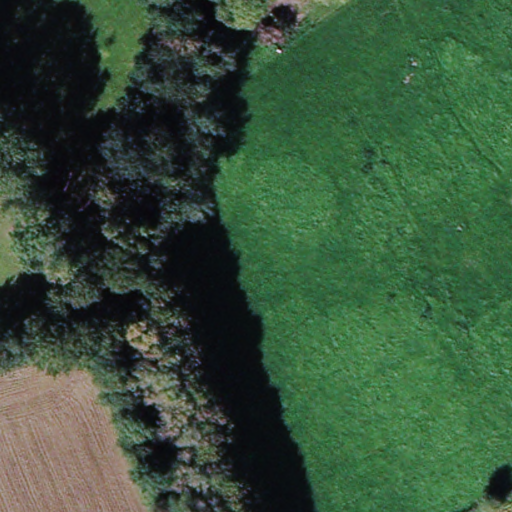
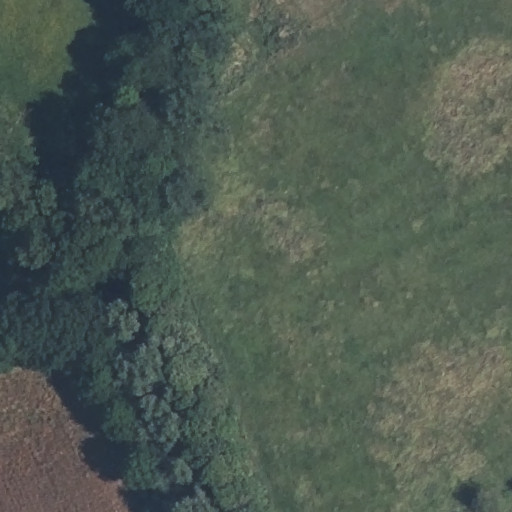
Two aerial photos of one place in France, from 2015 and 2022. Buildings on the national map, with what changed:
[]

